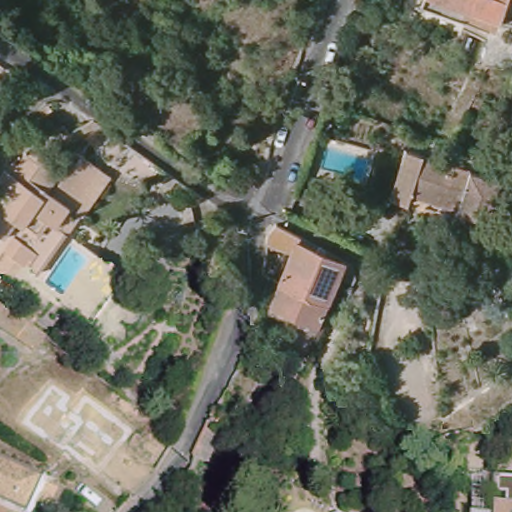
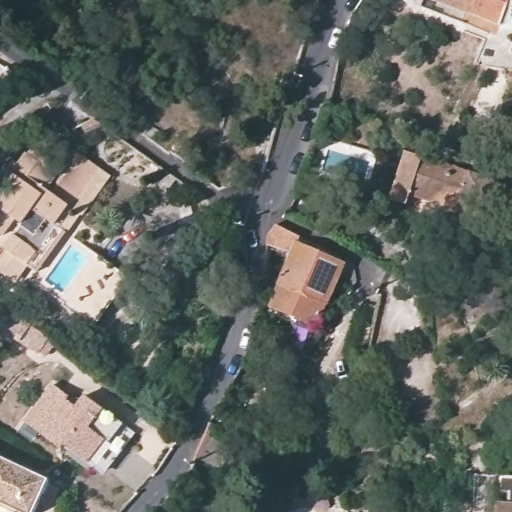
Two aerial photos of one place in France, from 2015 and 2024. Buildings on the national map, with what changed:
unchanged [(487,36),(455,24),(450,34),(411,17),(418,0),(502,0),(487,36)]
unchanged [(138,107),(124,98),(108,88),(126,58),(142,68),(133,83),(148,92),(138,107)]
unchanged [(451,219),(453,212),(455,207),(412,193),(409,200),(407,206),(387,199),(389,194),(403,152),(496,183),(482,222),(472,226),(451,219)]
unchanged [(0,173),(7,177),(22,156),(35,165),(53,178),(70,154),(96,172),(107,180),(80,220),(75,218),(33,276),(22,268),(12,282),(0,274),(0,174),(0,173)]
unchanged [(284,338),(288,317),(266,305),(288,262),(265,249),(266,242),(276,229),(299,241),(297,245),(317,255),(319,251),(323,254),(321,258),(342,269),(344,264),(354,270),(355,286),(352,291),(335,282),(310,329),(300,348),(284,338)]
unchanged [(97,259),(124,279),(117,289),(89,328),(35,290),(70,240),(97,259)]
unchanged [(37,351),(27,344),(0,325),(0,303),(37,329),(47,337),(37,351)]
new [(55,384),(72,396),(68,400),(78,407),(87,395),(136,430),(100,478),(26,424),(55,384)]
unchanged [(205,429),(220,435),(211,464),(194,457),(205,429)]
unchanged [(48,480),(48,483),(57,487),(49,505),(38,500),(33,512),(0,512),(0,457),(48,480)]
unchanged [(495,479),(512,480),(512,512),(472,512),(475,483),(495,479)]

